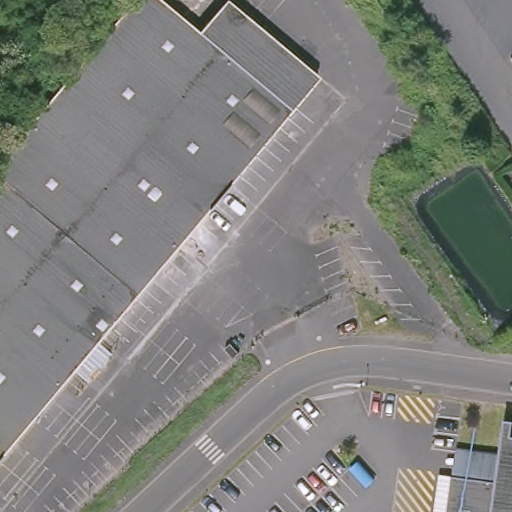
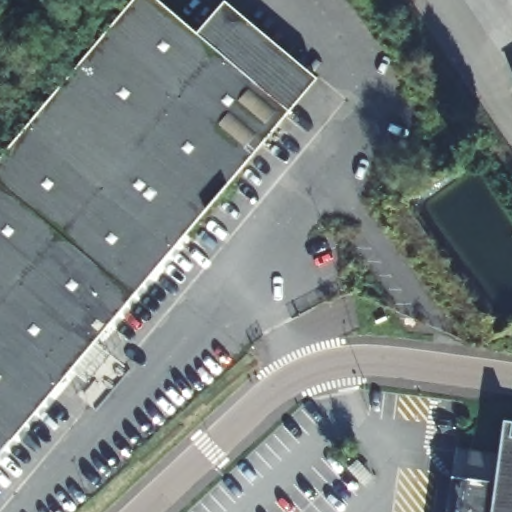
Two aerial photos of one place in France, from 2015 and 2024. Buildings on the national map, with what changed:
unchanged [(68,367),(0,449),(0,154),(128,0),(159,0),(193,27),(286,104),(93,337),(108,351),(82,380),(68,367)]
unchanged [(223,0),(298,60),(312,72),(305,81),(286,104),(193,27),(216,0),(223,0)]
unchanged [(512,83),(512,120),(495,94),(512,83)]
unchanged [(488,428),(490,415),(497,416),(495,430),(512,432),(512,512),(448,512),(459,443),(485,447),(488,428)]

